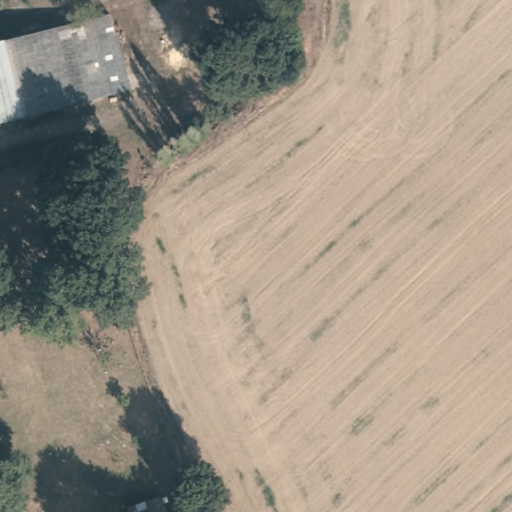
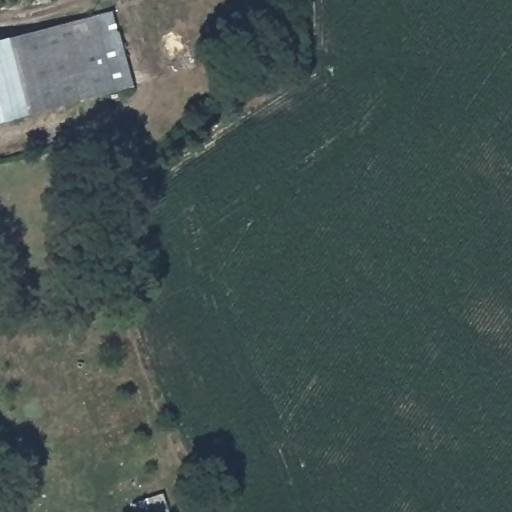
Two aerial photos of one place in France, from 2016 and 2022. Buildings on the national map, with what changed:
unchanged [(27,114),(3,41),(108,10),(115,33),(99,38),(114,88),(27,114)]
unchanged [(0,121),(0,42),(3,41),(27,114),(0,121)]

